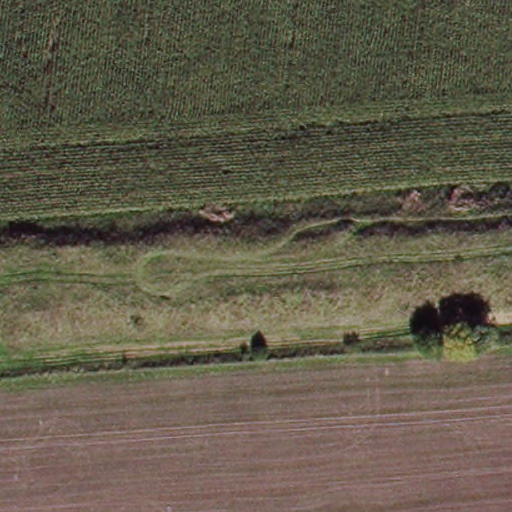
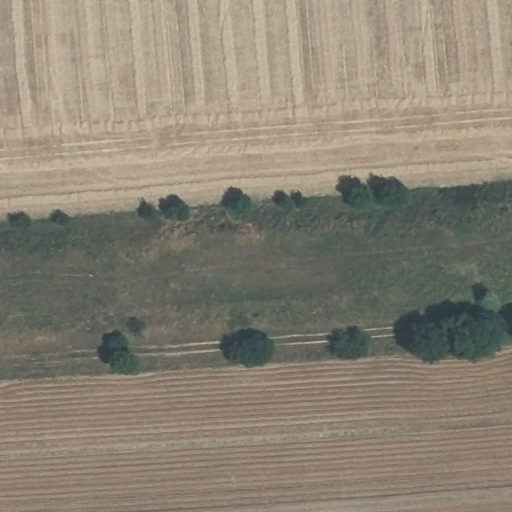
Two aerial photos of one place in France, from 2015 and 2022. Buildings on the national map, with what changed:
[]

